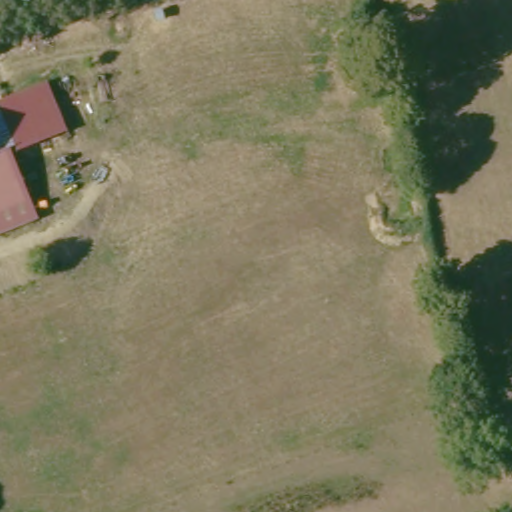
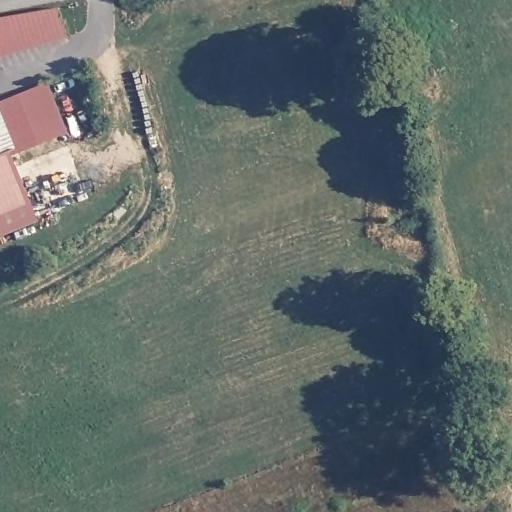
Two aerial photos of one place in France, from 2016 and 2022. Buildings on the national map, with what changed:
new [(68,44),(0,58),(0,17),(56,9),(68,44)]
unchanged [(0,106),(42,89),(60,132),(15,152),(0,118),(0,106)]
unchanged [(11,155),(0,160),(0,118),(15,152),(11,155)]
unchanged [(0,216),(0,160),(11,155),(32,202),(0,216)]

